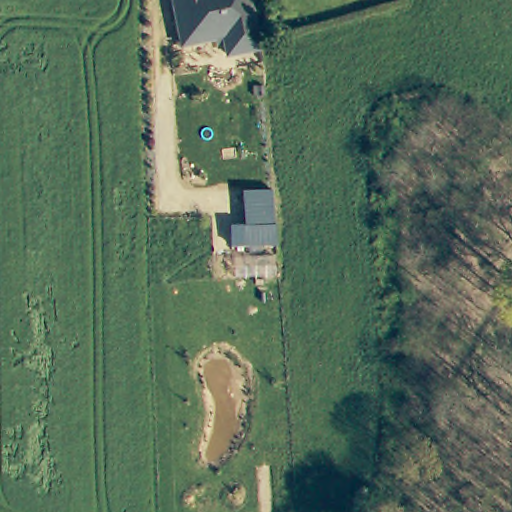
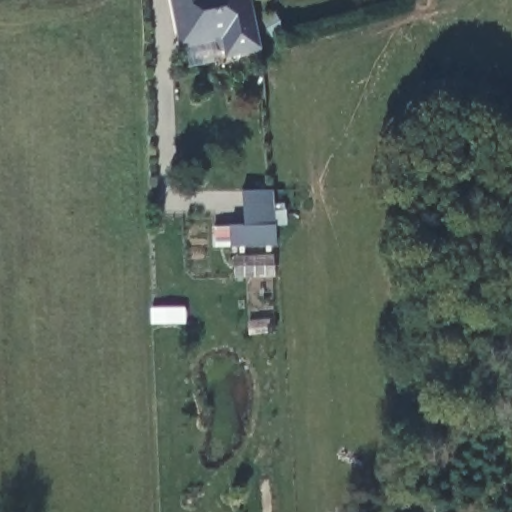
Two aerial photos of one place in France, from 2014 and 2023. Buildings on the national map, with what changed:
unchanged [(263,51),(228,59),(227,50),(218,52),(216,42),(182,49),(172,0),(252,0),(263,51)]
unchanged [(272,189),(277,225),(275,245),(231,247),(232,225),(246,224),(242,190),(272,189)]

